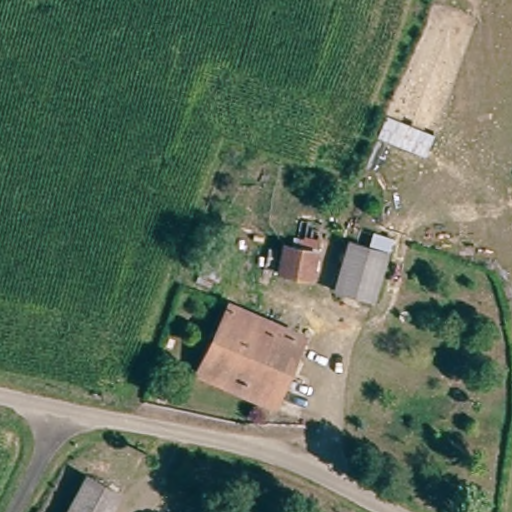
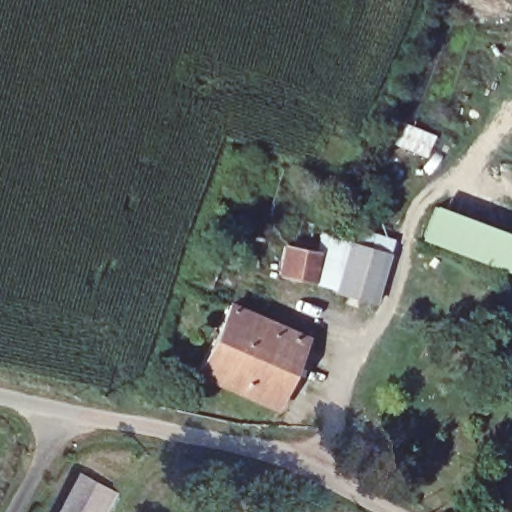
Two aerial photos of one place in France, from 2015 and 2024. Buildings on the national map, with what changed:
new [(434,136),(425,157),(400,148),(385,142),(394,119),(410,125),(434,136)]
new [(512,263),(509,271),(419,238),(433,205),(512,234),(512,263)]
unchanged [(279,274),(284,246),(300,249),(302,239),(303,229),(319,232),(318,243),(311,279),(279,274)]
unchanged [(373,303),(335,292),(349,242),(370,248),(374,234),(392,239),(373,303)]
unchanged [(298,334),(301,329),(306,332),(304,338),(272,404),(198,372),(229,304),(298,334)]
unchanged [(91,470),(126,489),(113,512),(69,512),(91,470)]

